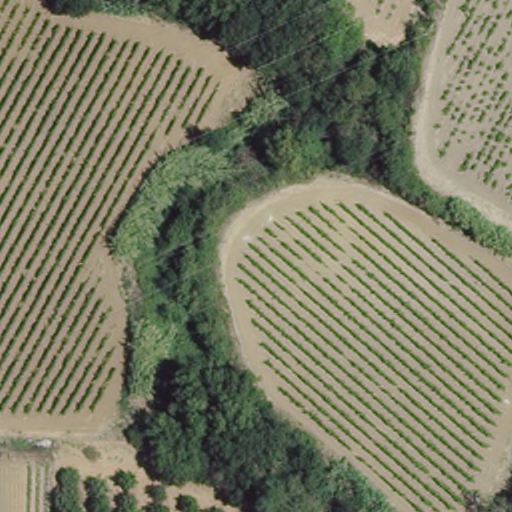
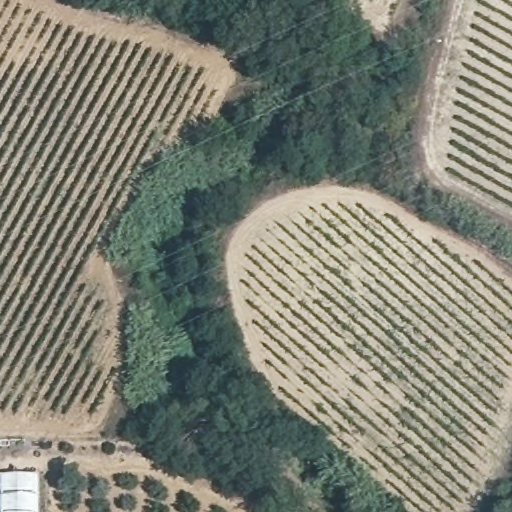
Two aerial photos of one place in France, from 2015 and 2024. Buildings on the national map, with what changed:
new [(37,473),(37,512),(0,512),(0,473),(37,473)]

